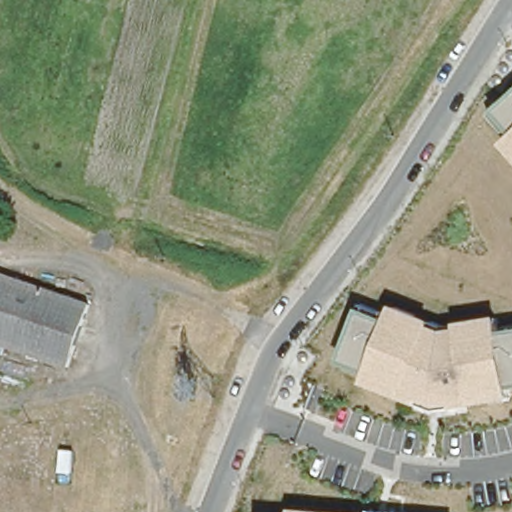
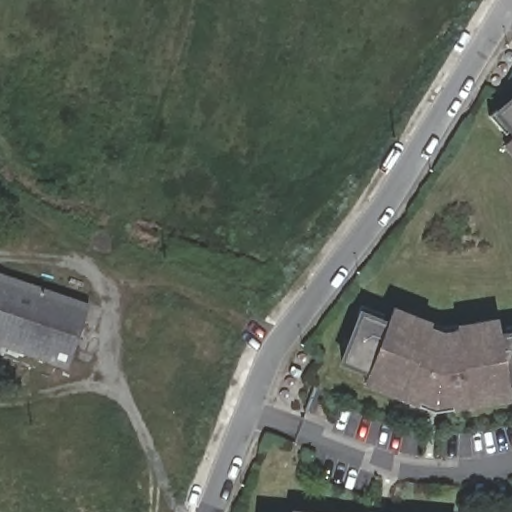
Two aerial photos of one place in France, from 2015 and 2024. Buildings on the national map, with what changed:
unchanged [(496,115),(512,99),(512,130),(496,115)]
unchanged [(504,145),(512,135),(512,155),(504,145)]
unchanged [(65,366),(0,343),(0,275),(87,303),(65,366)]
unchanged [(510,392),(512,400),(512,404),(436,413),(363,386),(367,371),(343,363),(362,312),(387,320),(393,307),(433,321),(432,328),(447,332),(457,330),(456,322),(498,317),(502,335),(512,333),(512,392),(510,392)]
unchanged [(309,512),(291,512),(291,511),(309,512)]

